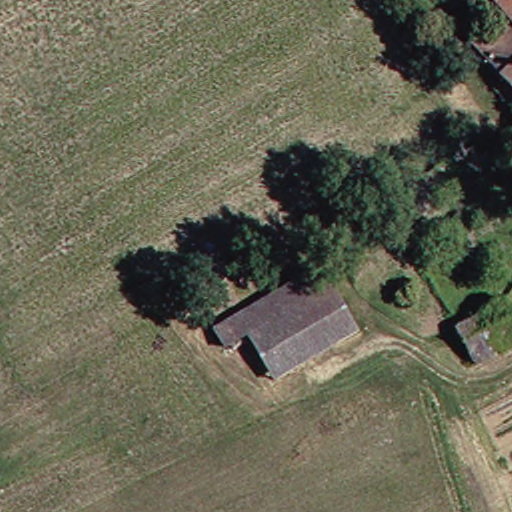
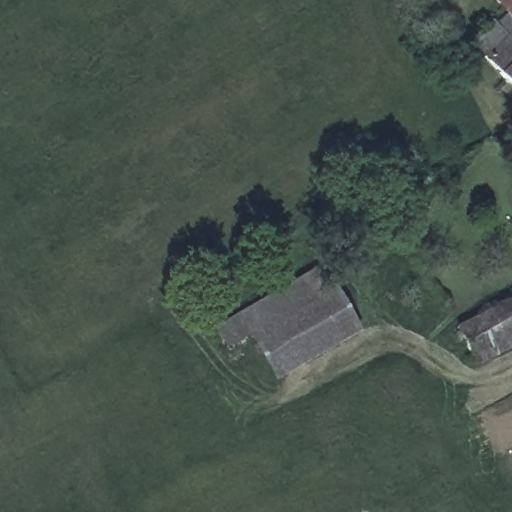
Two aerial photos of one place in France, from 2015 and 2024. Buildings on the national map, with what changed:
unchanged [(492,55),(480,44),(492,32),(512,12),(507,7),(500,0),(512,0),(512,75),(492,55)]
unchanged [(229,343),(218,324),(325,264),(335,284),(254,329),(229,343)]
unchanged [(361,329),(279,375),(254,329),(335,284),(361,329)]
unchanged [(473,374),(468,364),(455,336),(512,305),(512,351),(473,374)]

